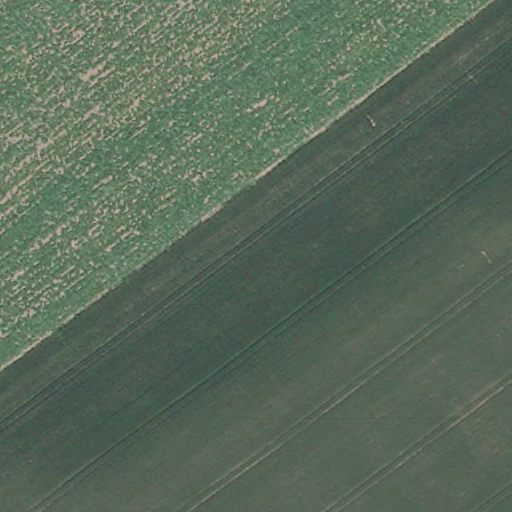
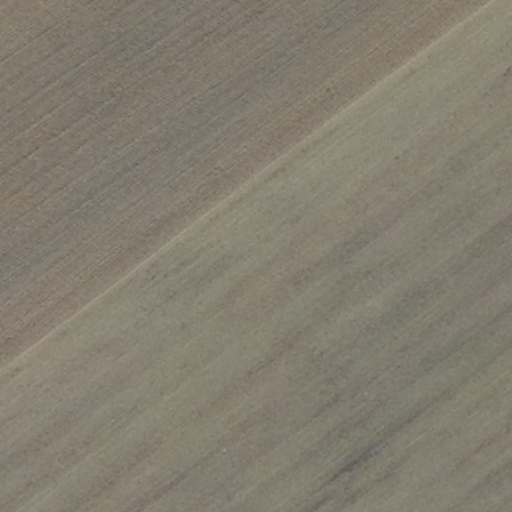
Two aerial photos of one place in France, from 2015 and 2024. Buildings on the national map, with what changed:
[]

